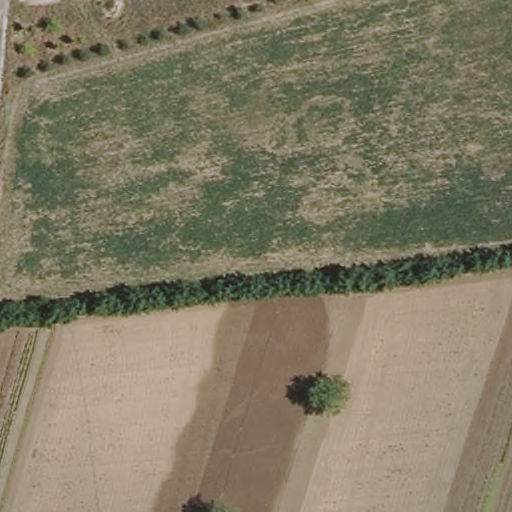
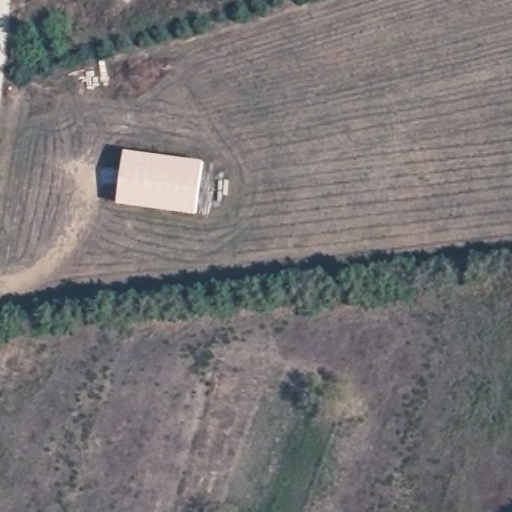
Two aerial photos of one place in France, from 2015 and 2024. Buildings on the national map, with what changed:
new [(204,161),(200,216),(116,204),(125,150),(204,161)]

